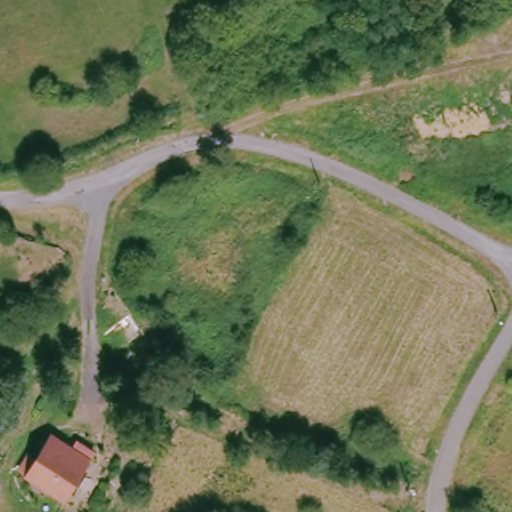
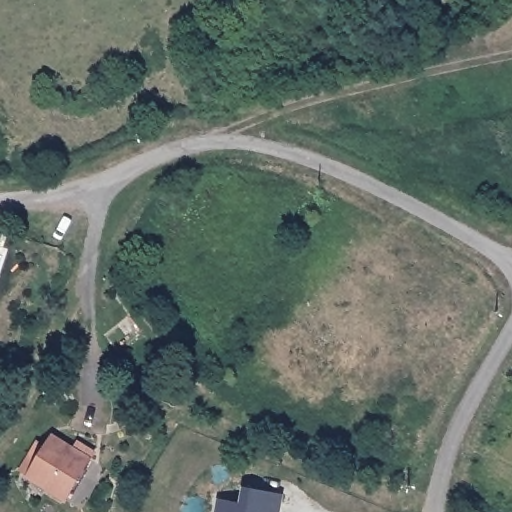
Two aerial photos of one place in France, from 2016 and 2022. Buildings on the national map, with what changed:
new [(2,241),(0,240),(0,229),(5,231),(2,241)]
unchanged [(92,450),(67,492),(27,469),(52,428),(92,450)]
new [(215,512),(217,497),(241,501),(244,484),(285,493),(282,512),(215,512)]

